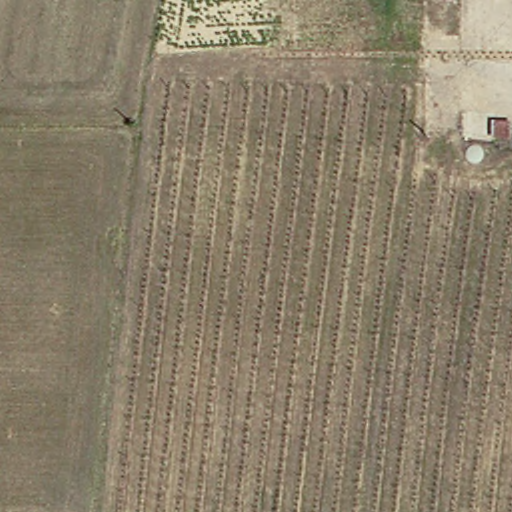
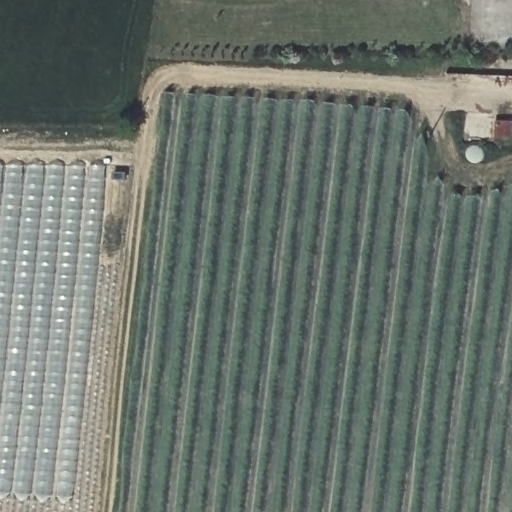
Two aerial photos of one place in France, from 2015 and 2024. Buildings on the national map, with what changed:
new [(0,492),(0,166),(104,166),(71,496),(0,492)]

